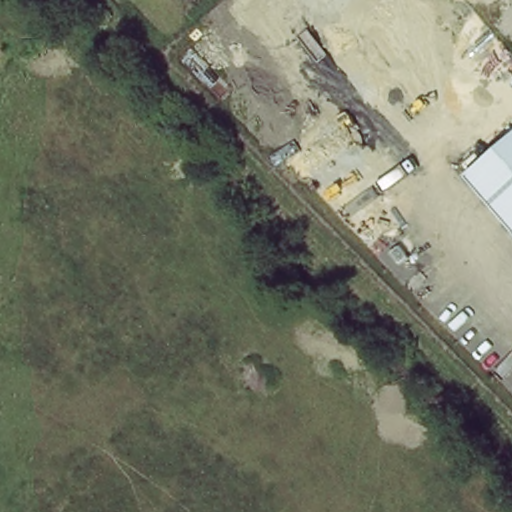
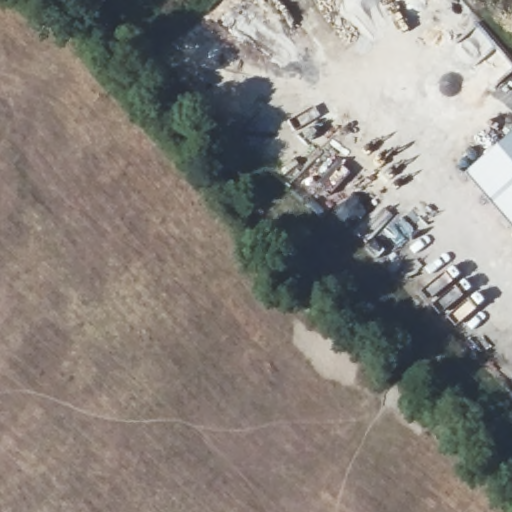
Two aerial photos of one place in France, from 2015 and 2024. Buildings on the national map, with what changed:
unchanged [(512,134),(512,229),(464,177),(512,134)]

